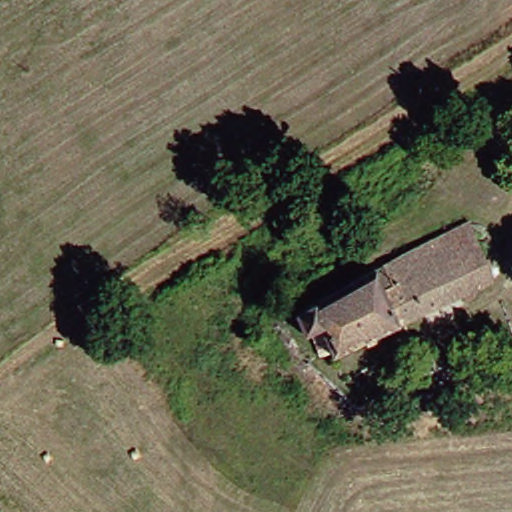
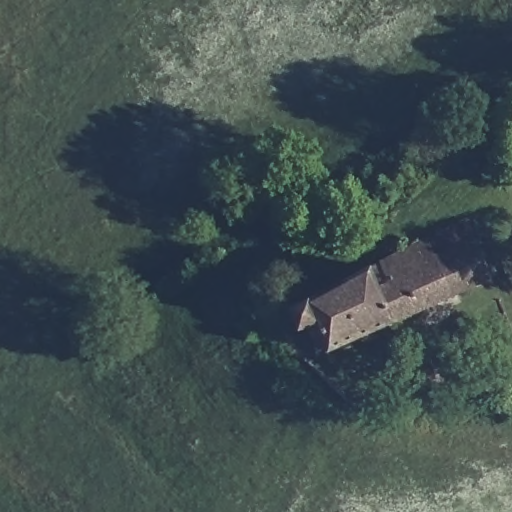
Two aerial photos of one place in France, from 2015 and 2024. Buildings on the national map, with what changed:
unchanged [(496,272),(341,353),(332,337),(324,342),(320,332),(310,338),(299,317),(375,270),(385,263),(467,217),(496,272)]

